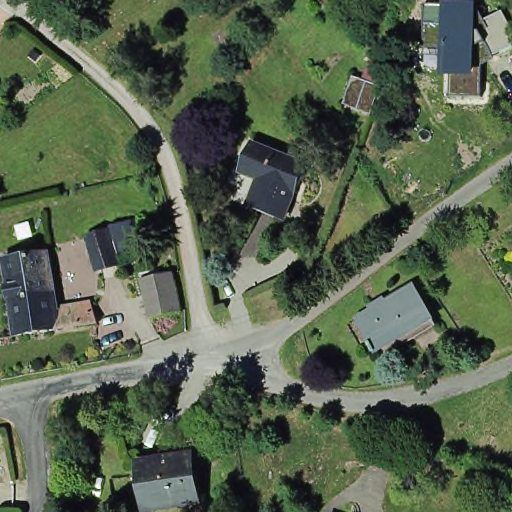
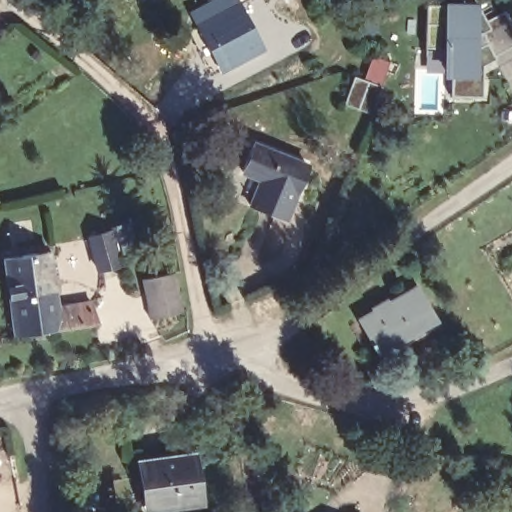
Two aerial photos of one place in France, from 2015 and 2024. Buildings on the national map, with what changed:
new [(239,0),(266,50),(219,76),(188,11),(211,0),(239,0)]
unchanged [(512,31),(512,46),(493,55),(494,59),(480,66),(481,97),(449,96),(449,77),(442,77),(442,48),(423,48),(424,4),(476,5),(484,20),(502,10),(512,31)]
unchanged [(374,104),(349,93),(361,68),(363,63),(369,66),(387,76),(374,104)]
unchanged [(302,193),(298,191),(284,218),(253,203),(263,178),(245,168),(259,142),(314,166),(302,193)]
unchanged [(97,268),(88,235),(109,227),(109,224),(134,217),(138,232),(140,245),(121,250),(118,238),(113,239),(120,262),(97,268)]
unchanged [(54,282),(30,287),(31,299),(10,303),(4,263),(49,254),(54,282)]
unchanged [(185,311),(181,312),(153,320),(141,284),(172,274),(176,273),(185,311)]
unchanged [(435,314),(439,320),(381,352),(376,344),(371,346),(365,332),(368,329),(357,306),(415,277),(435,314)]
unchanged [(61,313),(94,308),(97,329),(16,343),(10,303),(31,299),(30,287),(54,282),(61,313)]
unchanged [(202,509),(157,512),(148,512),(148,472),(136,472),(136,460),(179,457),(181,465),(198,463),(202,509)]

